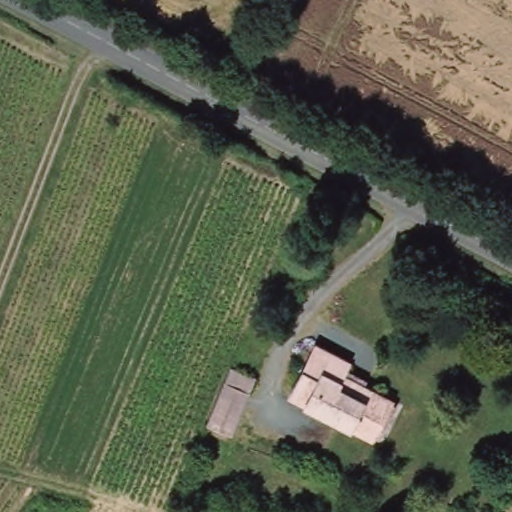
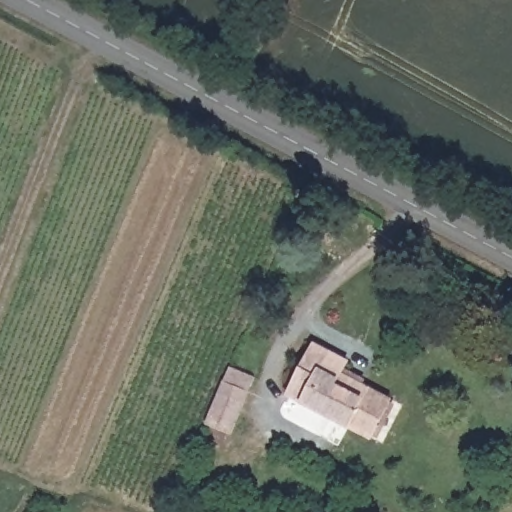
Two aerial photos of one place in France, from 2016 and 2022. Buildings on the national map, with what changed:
unchanged [(317,341),(350,359),(344,371),(392,397),(371,435),(290,394),(317,341)]
unchanged [(234,363),(256,374),(231,430),(209,421),(234,363)]

